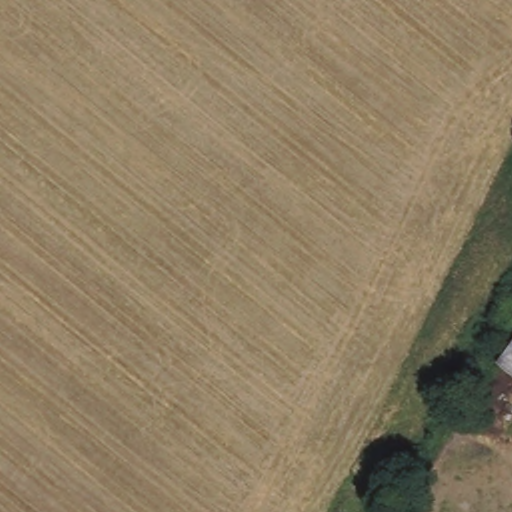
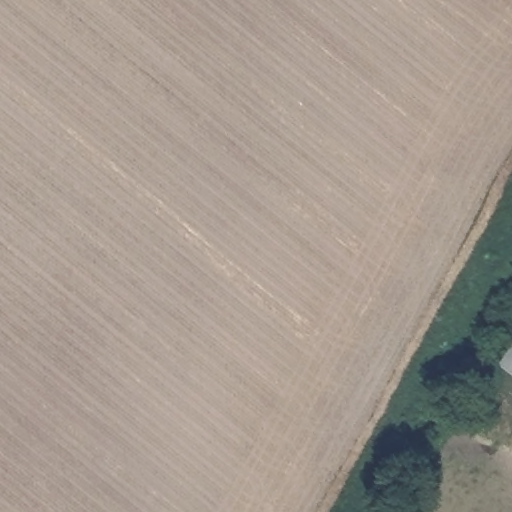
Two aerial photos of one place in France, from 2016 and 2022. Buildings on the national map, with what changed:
unchanged [(497,369),(512,349),(512,380),(497,369)]

